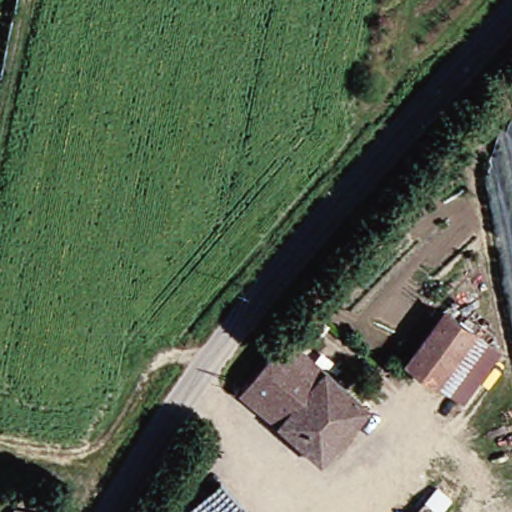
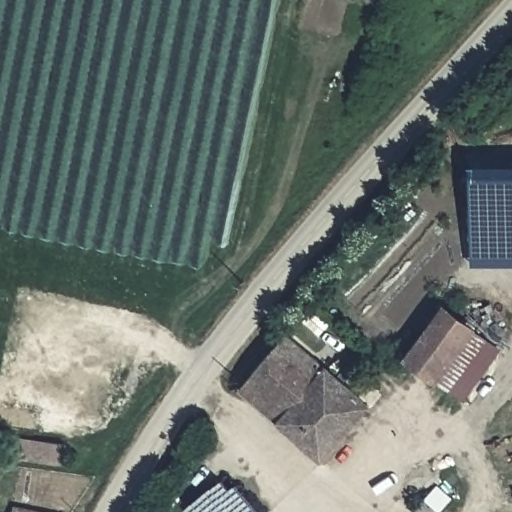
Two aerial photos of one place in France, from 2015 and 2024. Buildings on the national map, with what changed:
new [(473,265),(470,165),(512,165),(512,266),(473,265)]
unchanged [(432,378),(404,357),(444,305),(470,327),(432,378)]
unchanged [(495,346),(457,398),(432,378),(470,327),(495,346)]
unchanged [(272,424),(275,422),(235,390),(251,373),(265,356),(282,336),(321,368),(365,405),(316,459),(272,424)]
unchanged [(182,512),(176,507),(179,504),(172,500),(167,504),(160,498),(180,472),(186,477),(182,485),(188,491),(216,457),(275,512),(182,512)]
unchanged [(472,473),(457,491),(445,480),(459,462),(472,473)]
unchanged [(439,512),(424,512),(420,508),(431,494),(443,506),(439,512)]
unchanged [(14,512),(0,512),(0,509),(14,512)]

